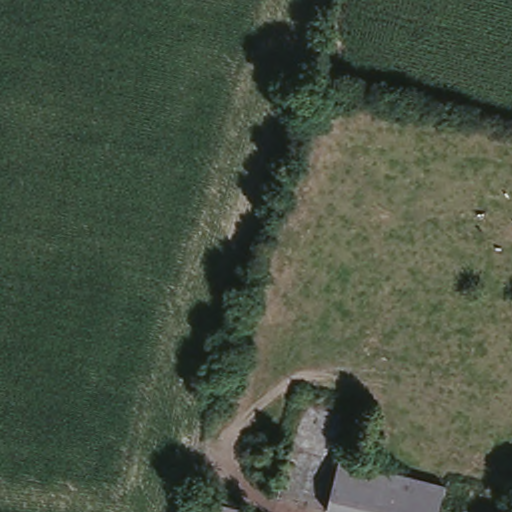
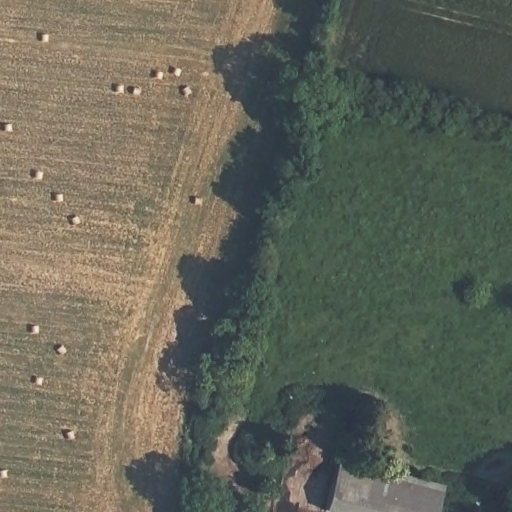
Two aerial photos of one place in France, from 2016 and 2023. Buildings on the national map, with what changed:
unchanged [(438,512),(345,512),(327,508),(337,457),(445,478),(438,512)]
unchanged [(272,512),(203,512),(206,496),(272,512)]

